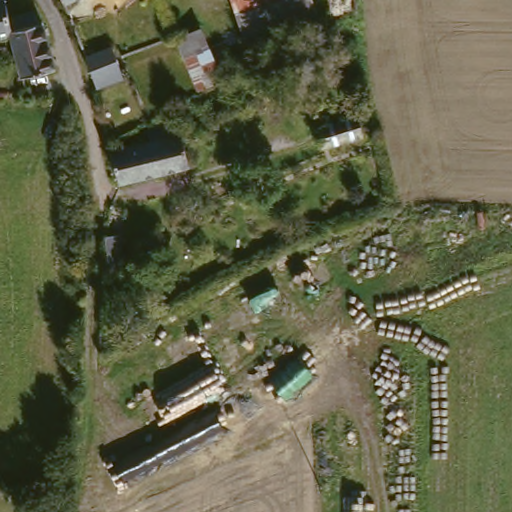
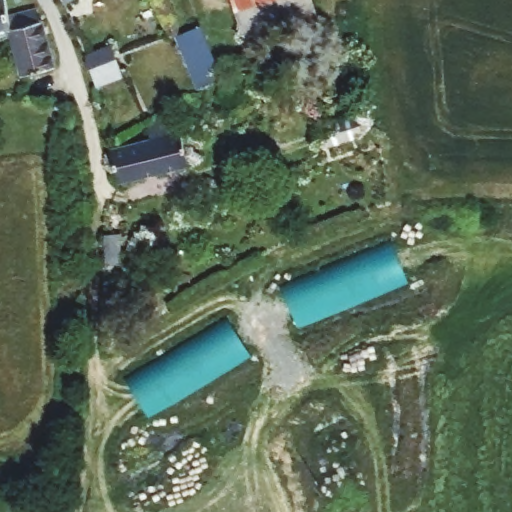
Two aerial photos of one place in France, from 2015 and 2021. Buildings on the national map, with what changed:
unchanged [(64,2),(63,0),(68,0),(64,2)]
unchanged [(246,50),(234,0),(309,0),(316,32),(270,44),(273,56),(250,61),(246,50)]
unchanged [(4,2),(9,25),(12,39),(6,40),(0,41),(0,3),(4,2)]
unchanged [(12,39),(9,25),(34,19),(36,30),(42,28),(56,73),(22,84),(6,40),(12,39)]
unchanged [(196,28),(213,67),(206,70),(212,86),(200,91),(176,36),(196,28)]
unchanged [(114,81),(85,91),(80,77),(75,62),(105,50),(110,65),(114,81)]
unchanged [(260,81),(265,92),(224,111),(220,100),(260,81)]
unchanged [(146,124),(182,117),(190,166),(122,180),(110,151),(150,142),(146,124)]
unchanged [(355,119),(360,135),(322,148),(317,131),(355,119)]
unchanged [(114,237),(117,262),(102,271),(102,255),(101,238),(114,237)]
new [(284,290),(392,247),(408,281),(297,325),(284,290)]
new [(249,352),(147,412),(129,381),(229,321),(249,352)]

